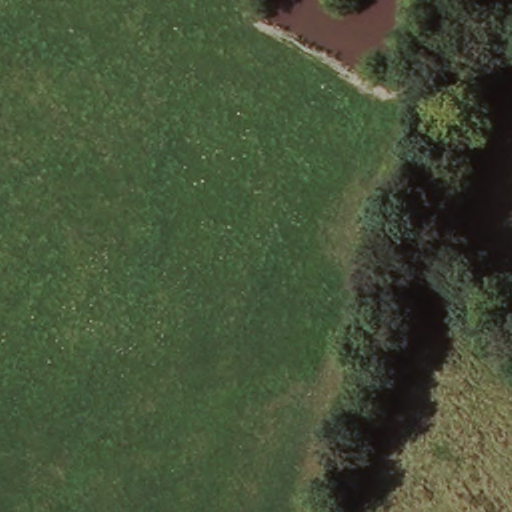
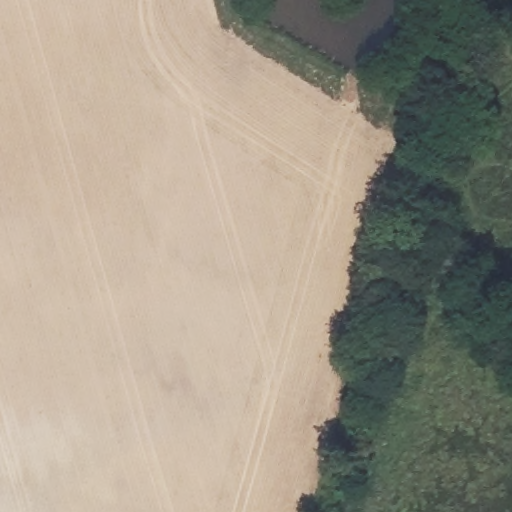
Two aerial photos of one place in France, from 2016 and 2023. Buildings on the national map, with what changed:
[]

